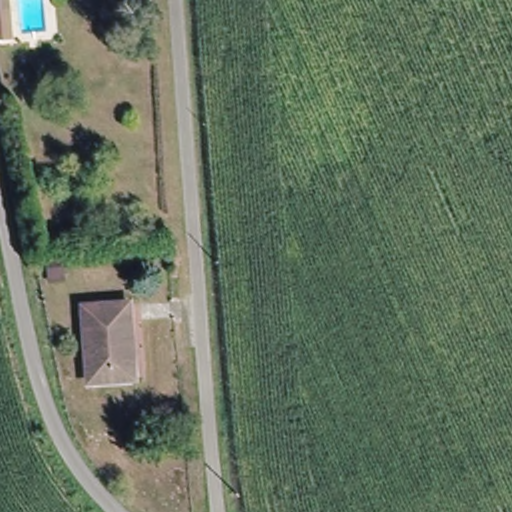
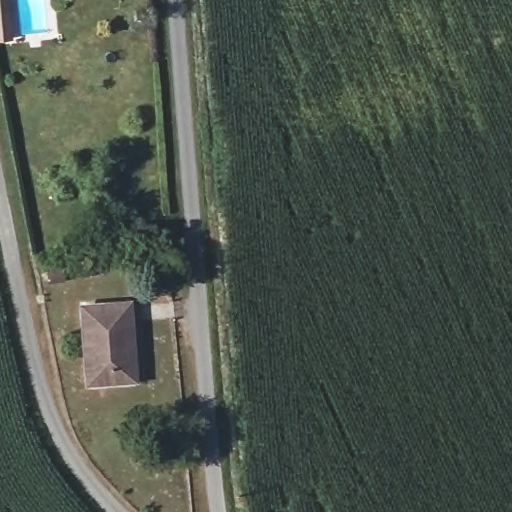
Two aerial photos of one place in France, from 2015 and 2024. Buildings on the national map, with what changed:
unchanged [(15,36),(0,37),(0,0),(11,0),(15,36)]
unchanged [(64,253),(66,278),(49,280),(47,254),(64,253)]
unchanged [(130,297),(135,382),(83,385),(79,341),(78,300),(130,297)]

